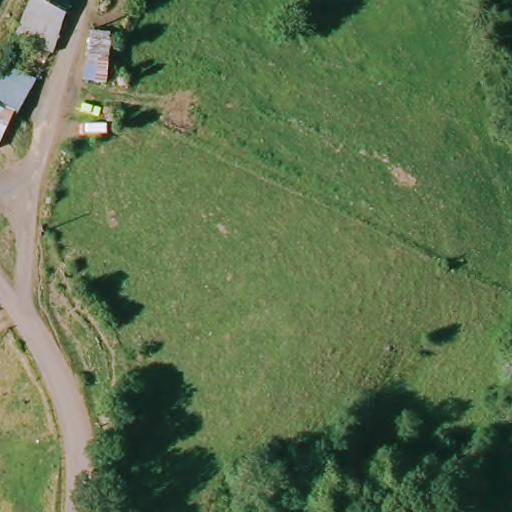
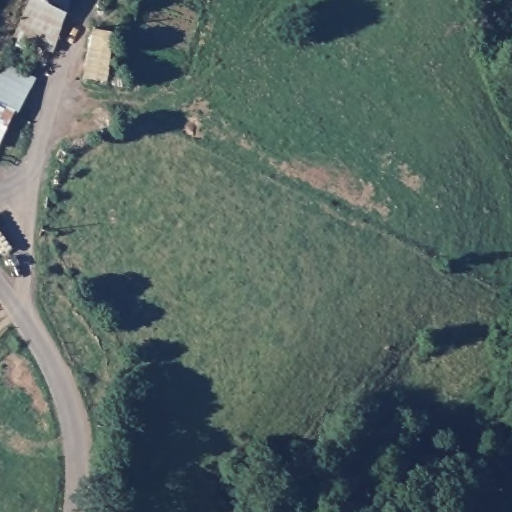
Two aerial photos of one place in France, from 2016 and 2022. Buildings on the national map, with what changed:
unchanged [(26,16),(30,0),(72,0),(62,31),(26,16)]
unchanged [(112,63),(117,64),(112,89),(84,90),(91,33),(114,33),(112,63)]
unchanged [(22,121),(10,113),(0,130),(0,77),(0,76),(11,84),(20,68),(42,82),(22,121)]

